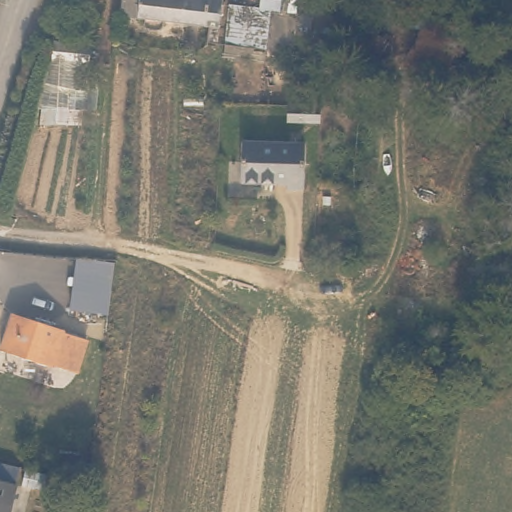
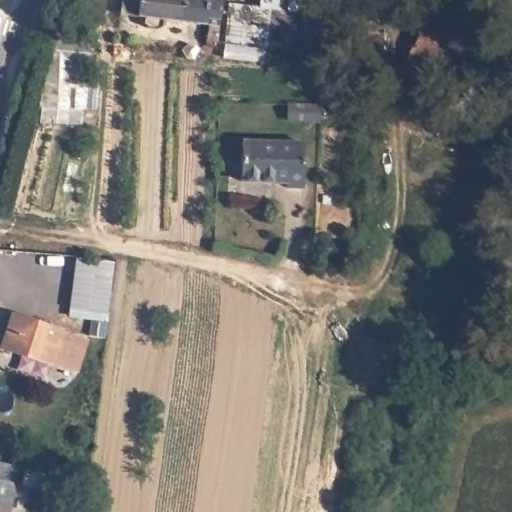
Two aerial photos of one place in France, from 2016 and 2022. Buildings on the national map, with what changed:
unchanged [(224,0),(243,5),(235,45),(234,52),(224,50),(220,50),(224,29),(176,17),(172,30),(156,25),(157,12),(134,7),(136,0),(202,0),(224,5),(224,0)]
unchanged [(377,19),(372,73),(287,64),(289,51),(235,45),(243,5),(377,19)]
unchanged [(44,45),(97,47),(95,109),(40,109),(44,45)]
unchanged [(450,62),(501,69),(498,92),(446,85),(450,62)]
unchanged [(309,136),(306,181),(285,181),(285,174),(244,173),(246,134),(309,136)]
unchanged [(76,256),(115,262),(110,315),(66,313),(76,256)]
unchanged [(90,339),(79,375),(0,348),(0,347),(11,314),(90,339)]
unchanged [(18,486),(9,512),(0,512),(0,480),(18,486)]

